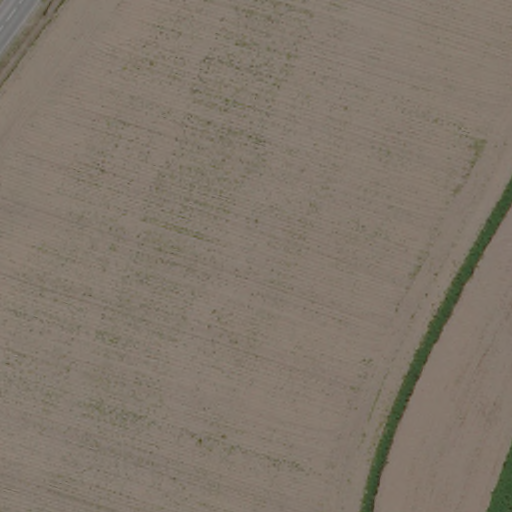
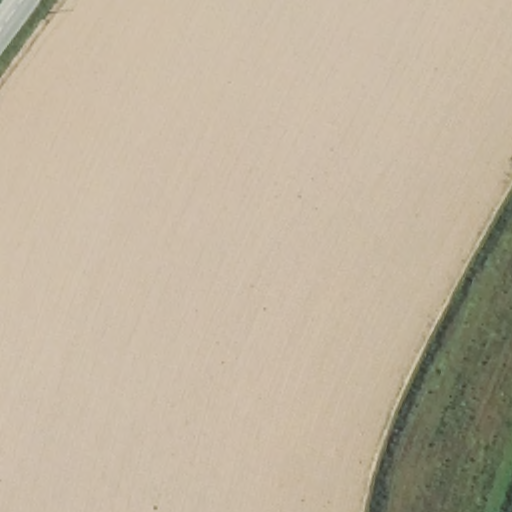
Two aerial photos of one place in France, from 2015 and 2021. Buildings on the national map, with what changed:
[]

